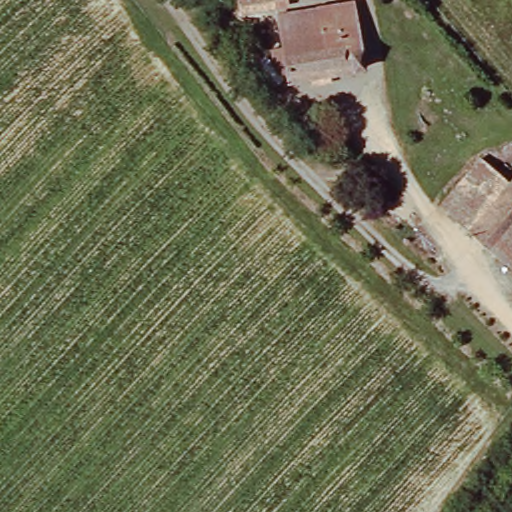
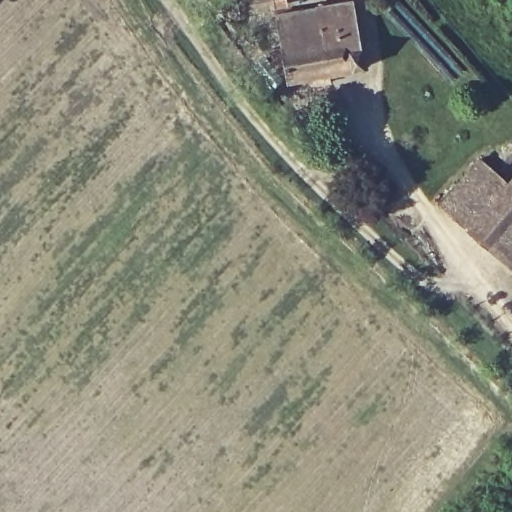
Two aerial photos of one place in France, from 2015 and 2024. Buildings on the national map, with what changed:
unchanged [(235,17),(231,0),(271,0),(272,7),(235,17)]
unchanged [(355,72),(280,85),(268,20),(345,6),(355,72)]
unchanged [(489,173),(503,185),(512,175),(512,276),(449,216),(489,173)]

